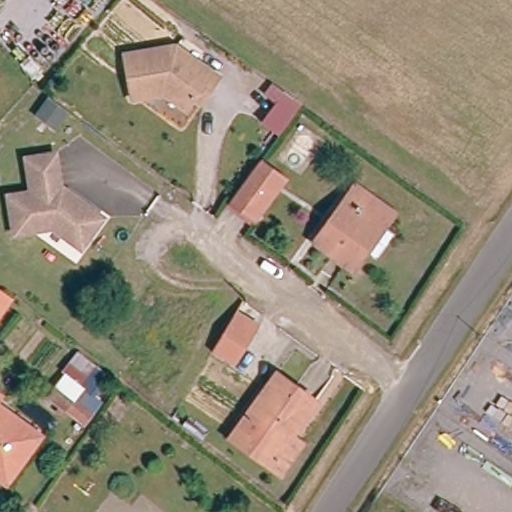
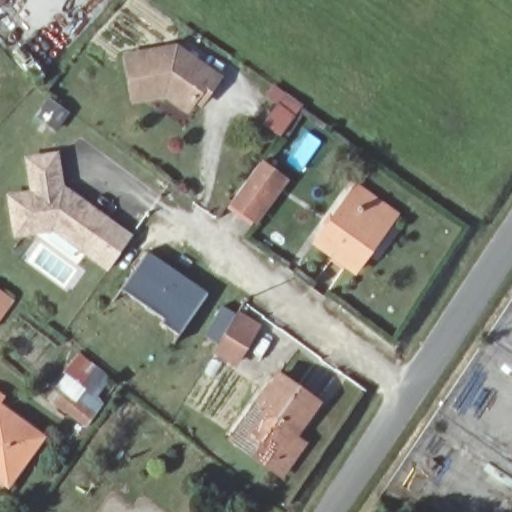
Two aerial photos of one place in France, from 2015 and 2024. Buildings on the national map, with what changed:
unchanged [(199,101),(191,111),(169,94),(137,99),(131,55),(182,47),(223,80),(213,93),(204,105),(199,101)]
unchanged [(261,124),(276,104),(283,94),(299,106),(292,116),(277,136),(261,124)]
unchanged [(71,112),(72,112),(61,127),(41,113),(53,98),(71,112)]
unchanged [(14,189),(38,187),(35,154),(63,151),(66,184),(108,217),(85,246),(55,224),(18,227),(14,189)]
unchanged [(283,180),(253,220),(229,202),(234,194),(258,162),(283,180)]
unchanged [(313,244),(347,196),(355,184),(397,214),(366,257),(355,274),(313,244)]
new [(144,252),(205,296),(176,336),(158,323),(161,320),(118,289),(144,252)]
unchanged [(216,346),(236,315),(257,327),(237,360),(216,346)]
unchanged [(92,362),(76,385),(102,403),(83,427),(46,401),(75,352),(92,362)]
unchanged [(277,373),(318,403),(293,437),(278,456),(238,426),(277,373)]
unchanged [(0,402),(0,395),(3,397),(0,402)]
unchanged [(7,485),(0,479),(0,405),(42,436),(7,485)]
unchanged [(303,443),(280,477),(229,440),(238,426),(278,456),(293,437),(303,443)]

